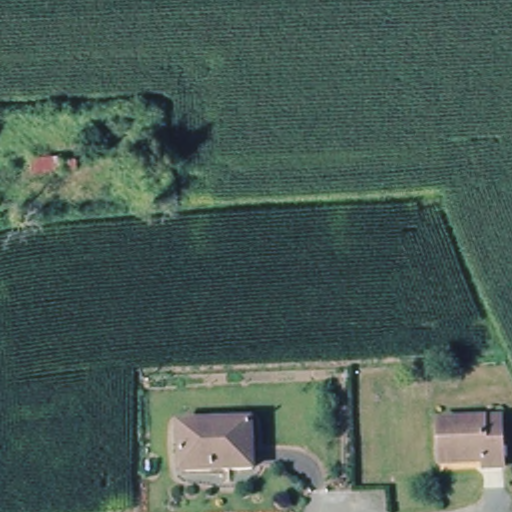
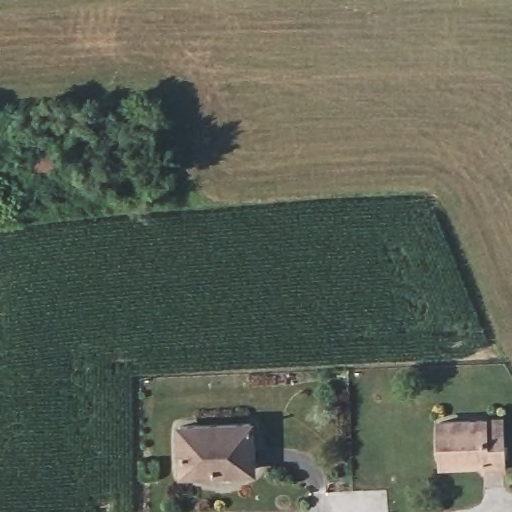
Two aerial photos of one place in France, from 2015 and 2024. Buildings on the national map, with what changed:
unchanged [(512,418),(512,472),(490,472),(490,466),(449,467),(446,422),(512,418)]
unchanged [(254,423),(255,472),(184,473),(181,425),(254,423)]

